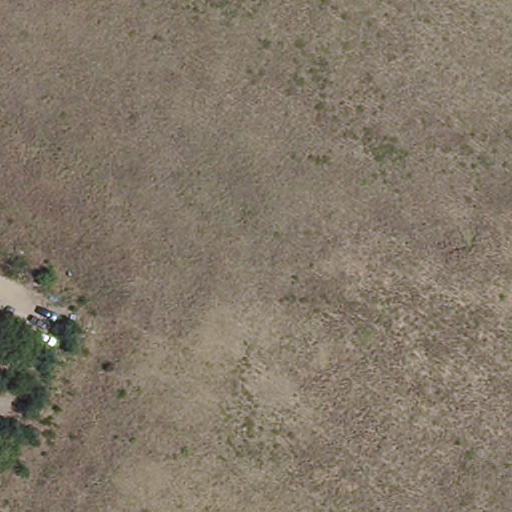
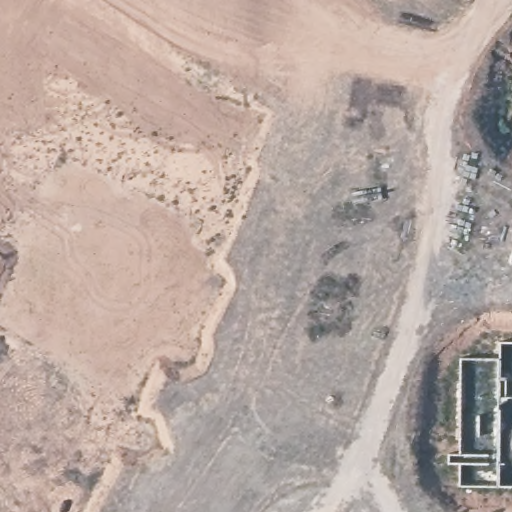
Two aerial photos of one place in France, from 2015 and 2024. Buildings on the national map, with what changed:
new [(512,109),(512,117),(510,116),(512,109)]
new [(500,341),(512,341),(512,488),(459,488),(460,464),(448,464),(448,454),(460,454),(460,359),(500,358),(500,341)]

